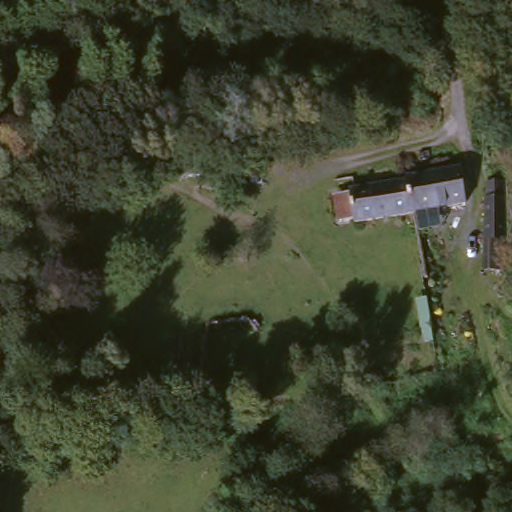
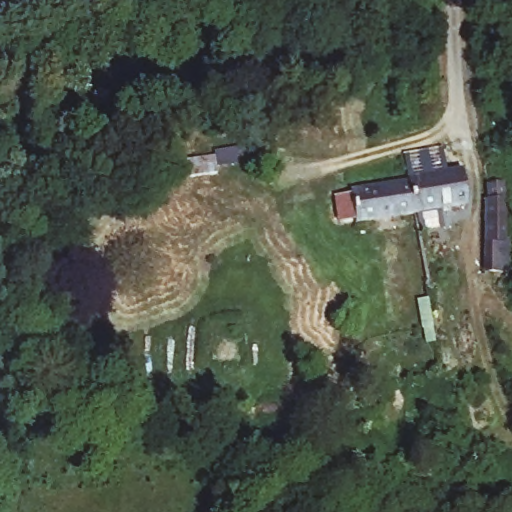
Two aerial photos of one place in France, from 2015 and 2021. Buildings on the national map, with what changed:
unchanged [(462,208),(404,217),(400,185),(457,173),(462,208)]
unchanged [(483,270),(485,241),(485,198),(487,198),(486,183),(505,182),(505,241),(506,270),(483,270)]
unchanged [(345,192),(400,185),(404,217),(349,225),(345,192)]

